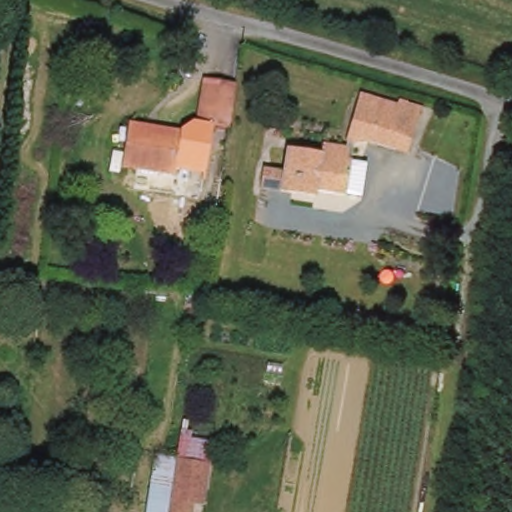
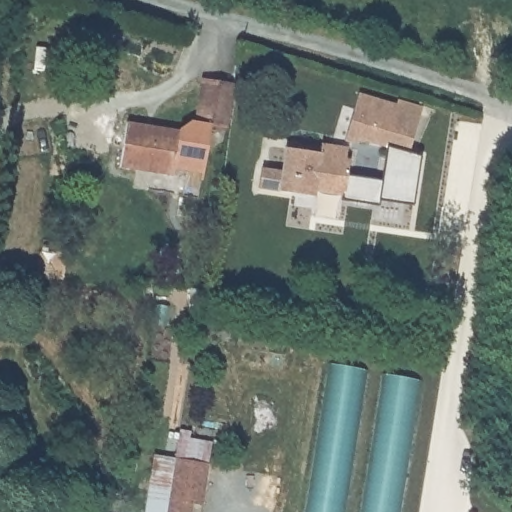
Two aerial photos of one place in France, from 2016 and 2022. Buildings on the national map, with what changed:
unchanged [(228,128),(197,123),(205,81),(235,86),(228,128)]
unchanged [(415,152),(373,140),(360,139),(351,137),(365,89),(403,100),(404,95),(429,102),(415,152)]
unchanged [(174,176),(121,168),(130,124),(131,122),(181,132),(174,176)]
unchanged [(211,125),(205,174),(175,170),(181,132),(197,123),(211,125)]
unchanged [(350,190),(321,186),(319,192),(285,187),(293,143),(326,148),(327,138),(354,142),(352,156),(355,156),(350,190)]
unchanged [(439,347),(417,344),(418,333),(440,336),(439,347)]
new [(368,372),(346,512),(306,512),(333,366),(368,372)]
new [(423,382),(401,512),(361,512),(383,376),(423,382)]
unchanged [(157,451),(178,454),(211,459),(204,501),(194,499),(193,512),(147,512),(152,481),(157,451)]
unchanged [(98,512),(88,512),(88,511),(98,512)]

